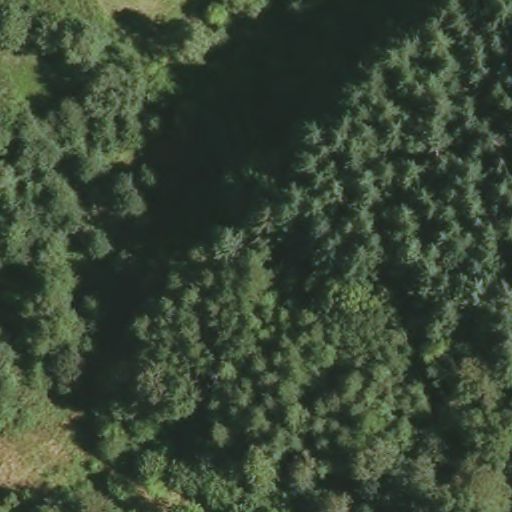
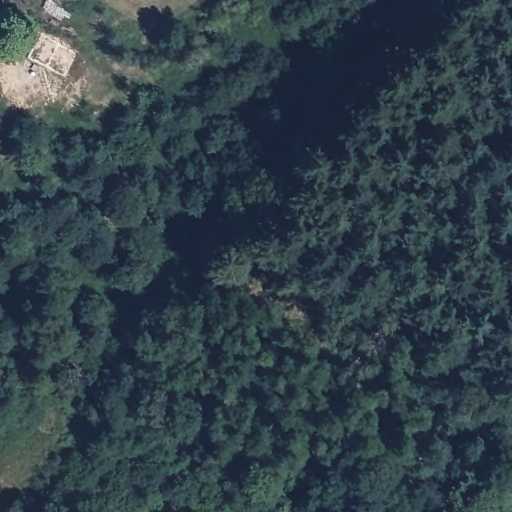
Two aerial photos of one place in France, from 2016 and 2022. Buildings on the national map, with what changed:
[]

